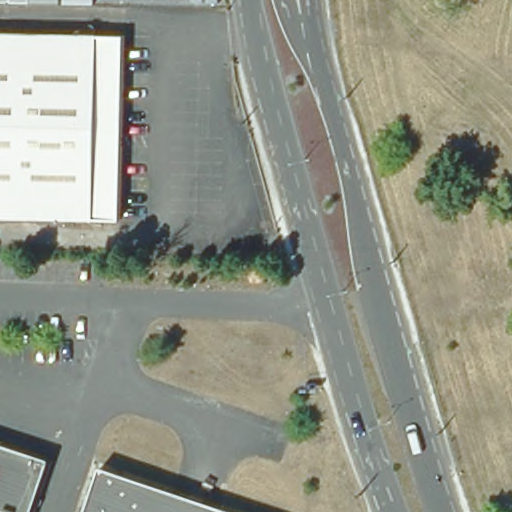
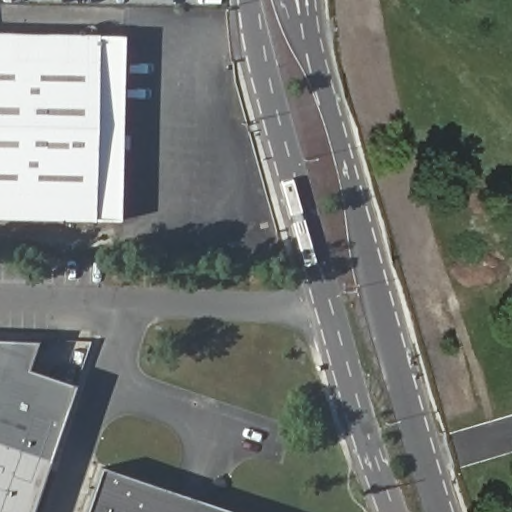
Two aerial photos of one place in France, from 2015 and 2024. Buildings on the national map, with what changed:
unchanged [(119,221),(0,219),(0,32),(125,34),(119,221)]
new [(0,340),(38,341),(29,370),(75,385),(50,455),(0,438),(0,340)]
unchanged [(30,512),(0,512),(0,438),(50,455),(30,512)]
unchanged [(103,463),(245,512),(86,512),(103,463)]

